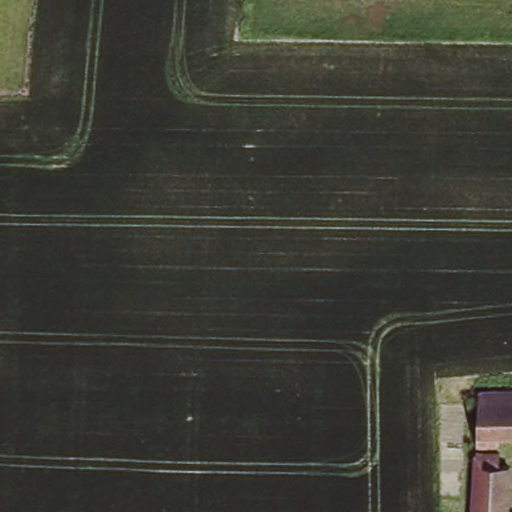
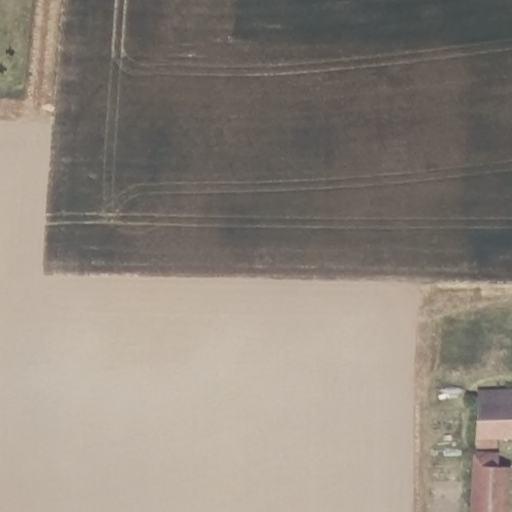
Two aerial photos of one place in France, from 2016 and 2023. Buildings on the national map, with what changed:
unchanged [(499,451),(473,449),(475,398),(512,396),(512,437),(497,437),(499,451)]
unchanged [(510,512),(473,512),(475,463),(512,463),(510,512)]

